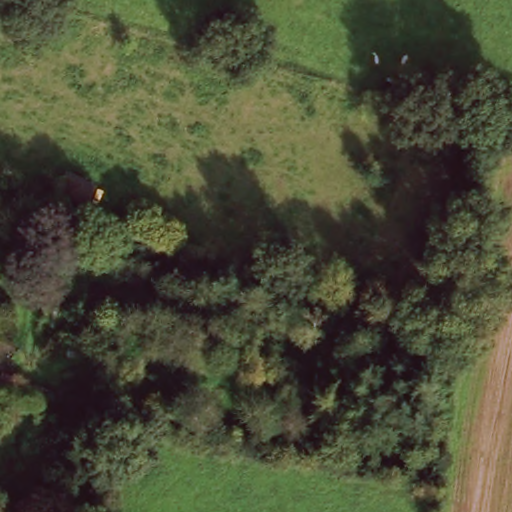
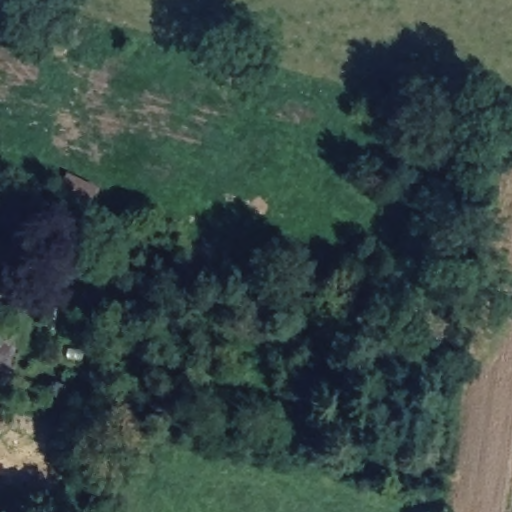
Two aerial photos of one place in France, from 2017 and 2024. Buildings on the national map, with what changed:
unchanged [(97,195),(84,217),(55,196),(69,175),(97,195)]

